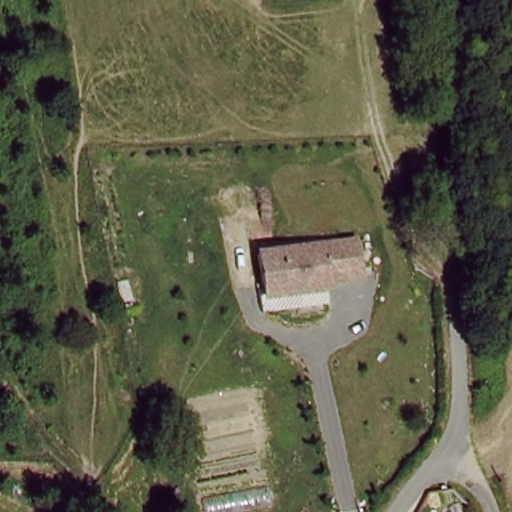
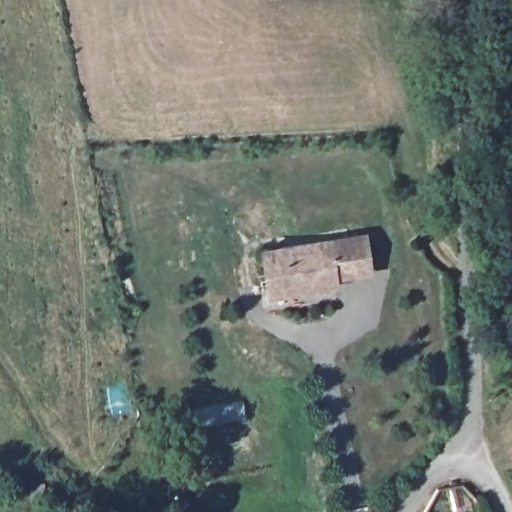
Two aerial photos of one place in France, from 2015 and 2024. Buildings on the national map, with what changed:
unchanged [(276,293),(269,258),(373,243),(378,279),(343,284),(344,292),(311,297),(277,302),(276,293)]

